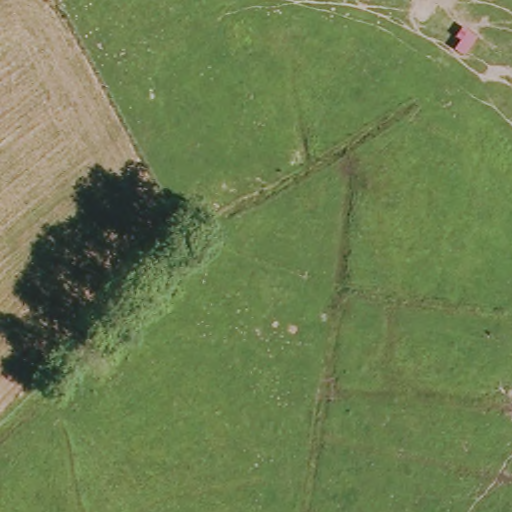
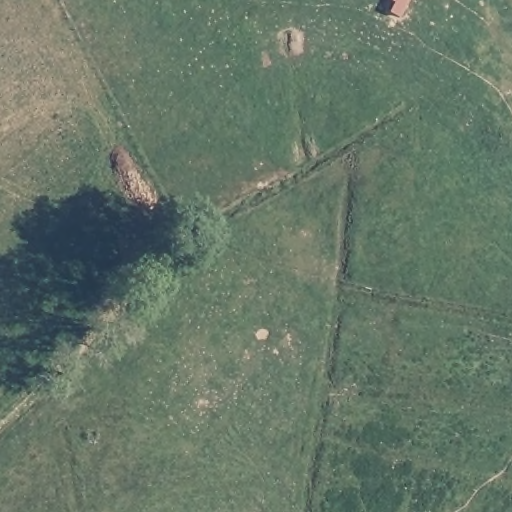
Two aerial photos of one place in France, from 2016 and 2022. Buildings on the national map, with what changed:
[]

